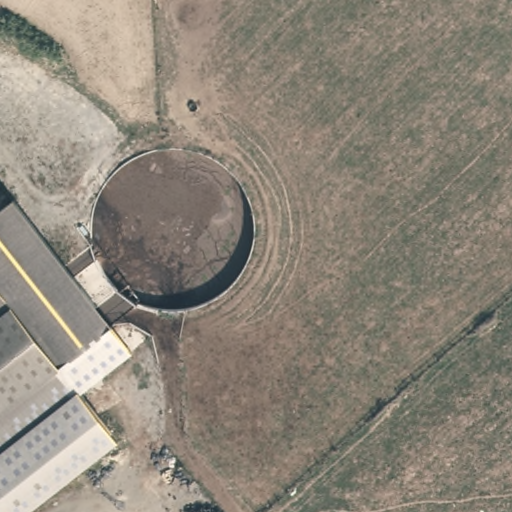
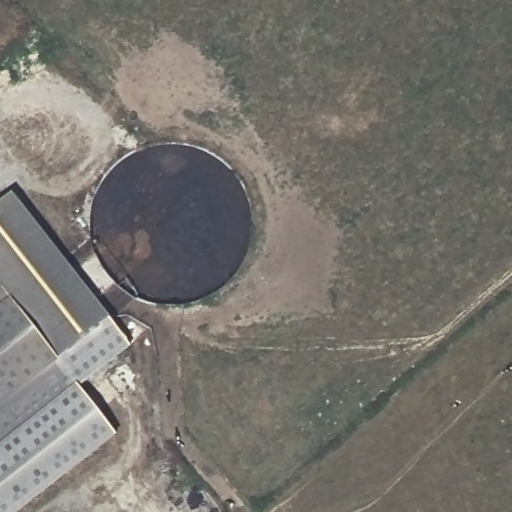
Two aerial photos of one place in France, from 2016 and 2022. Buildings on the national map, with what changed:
unchanged [(0,206),(14,195),(112,323),(61,364),(0,284),(0,206)]
unchanged [(0,435),(0,284),(61,364),(74,379),(0,435)]
unchanged [(115,435),(18,512),(0,512),(0,435),(74,379),(115,435)]

